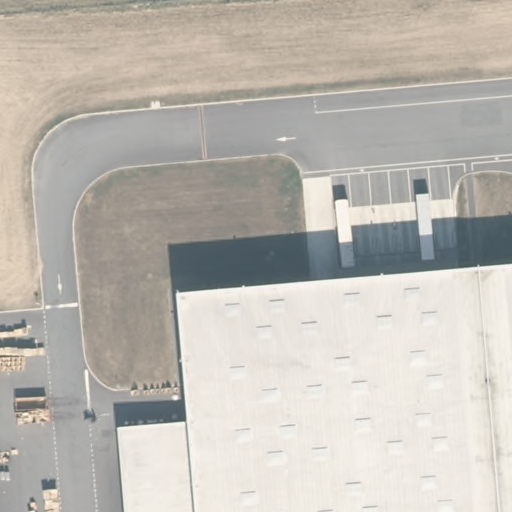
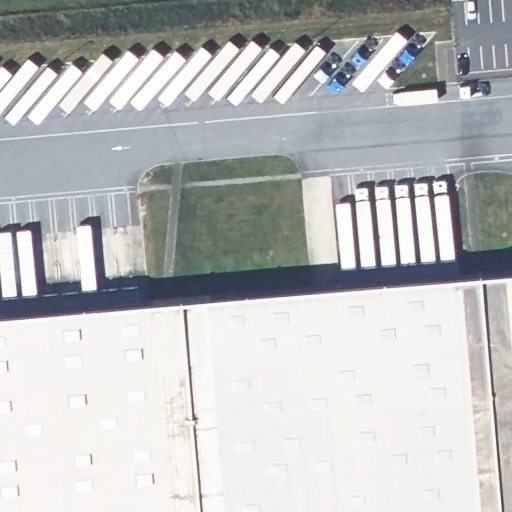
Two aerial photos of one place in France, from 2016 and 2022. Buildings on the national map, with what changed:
unchanged [(121,430),(191,422),(180,298),(480,273),(512,270),(512,512),(128,512),(121,430)]
new [(121,430),(128,512),(0,512),(0,313),(180,298),(191,422),(121,430)]

